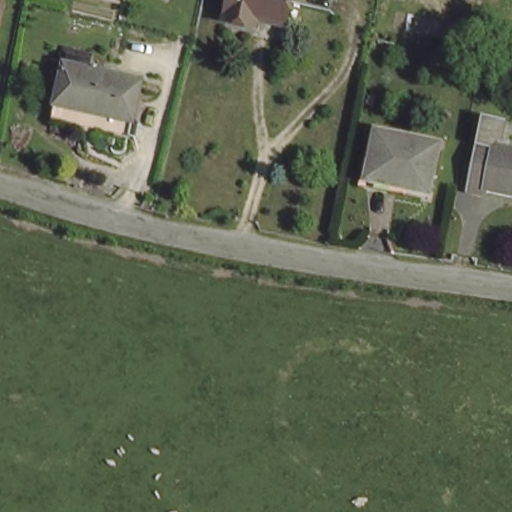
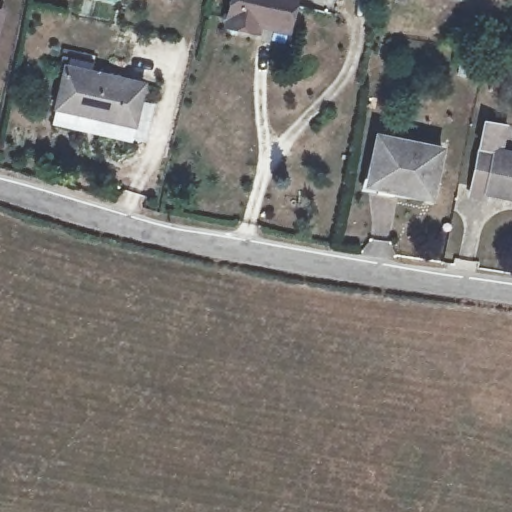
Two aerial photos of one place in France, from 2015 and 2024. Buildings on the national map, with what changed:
unchanged [(287,35),(256,27),(253,35),(223,28),(230,0),(293,0),(287,35)]
unchanged [(0,18),(0,9),(2,10),(0,18)]
unchanged [(469,55),(466,69),(454,67),(457,52),(469,55)]
unchanged [(506,59),(502,88),(487,86),(491,57),(506,59)]
unchanged [(57,109),(68,67),(146,87),(136,131),(57,109)]
unchanged [(491,192),(489,198),(470,192),(484,121),(507,126),(506,141),(498,139),(496,151),(512,153),(512,197),(491,192)]
unchanged [(370,186),(374,162),(366,161),(369,141),(436,152),(428,202),(401,199),(401,192),(370,186)]

